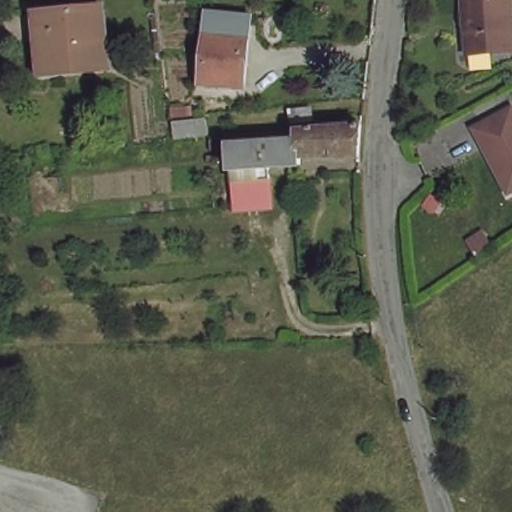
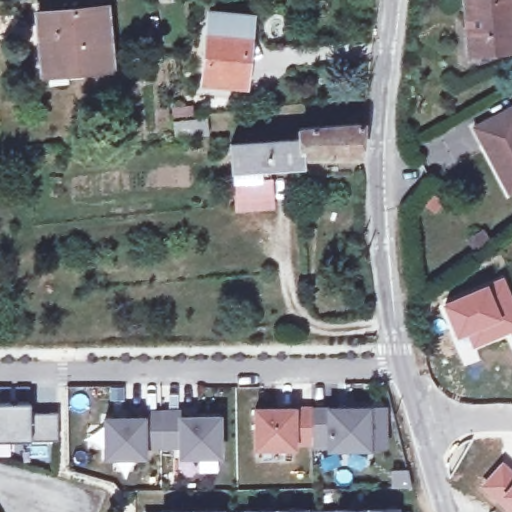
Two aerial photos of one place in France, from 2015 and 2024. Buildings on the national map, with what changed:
unchanged [(464,0),(508,0),(512,38),(512,53),(469,55),(464,0)]
unchanged [(44,71),(40,20),(105,15),(109,74),(64,77),(63,70),(44,71)]
unchanged [(202,85),(207,16),(247,19),(242,88),(202,85)]
unchanged [(477,132),(512,112),(512,198),(511,198),(477,132)]
unchanged [(232,174),(227,174),(226,151),(264,150),(297,146),(296,133),(362,128),(358,163),(299,161),(299,170),(266,171),(268,214),(237,216),(232,174)]
new [(512,295),(512,331),(472,347),(466,335),(457,339),(441,302),(504,276),(512,295)]
new [(24,400),(24,411),(52,410),(51,439),(0,439),(0,400),(24,400)]
new [(360,406),(360,445),(321,446),(321,433),(304,433),(305,441),(286,442),(286,446),(247,445),(247,407),(360,406)]
new [(136,415),(136,410),(175,410),(175,415),(213,415),(213,454),(175,454),(174,444),(138,444),(138,454),(99,454),(99,415),(136,415)]
new [(512,468),(512,512),(505,512),(477,488),(502,459),(512,468)]
new [(240,509),(297,509),(298,512),(331,512),(331,508),(389,507),(389,512),(240,512),(240,509)]
new [(156,510),(214,510),(214,512),(156,512),(156,510)]

